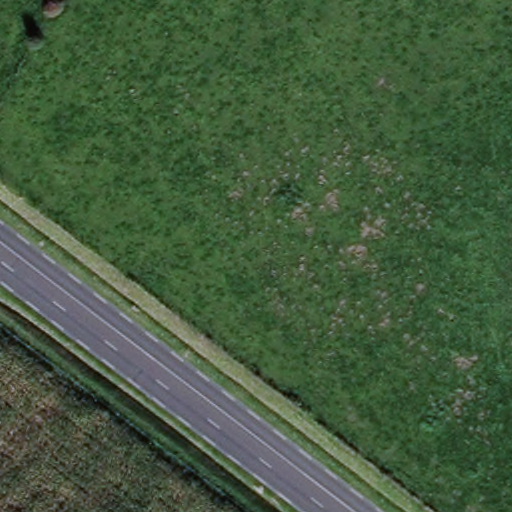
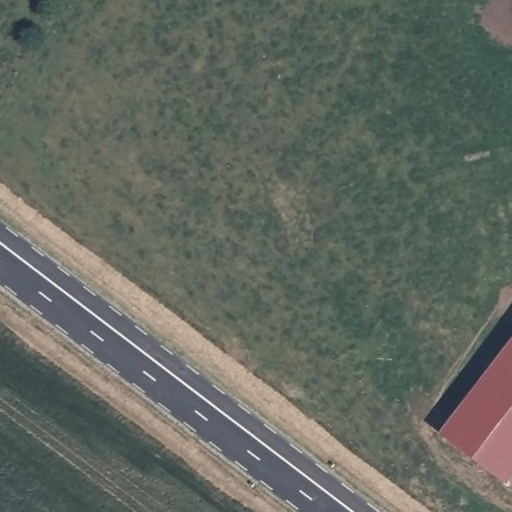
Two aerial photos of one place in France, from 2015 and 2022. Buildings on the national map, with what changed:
new [(508,484),(440,434),(512,340),(512,479),(508,484)]

